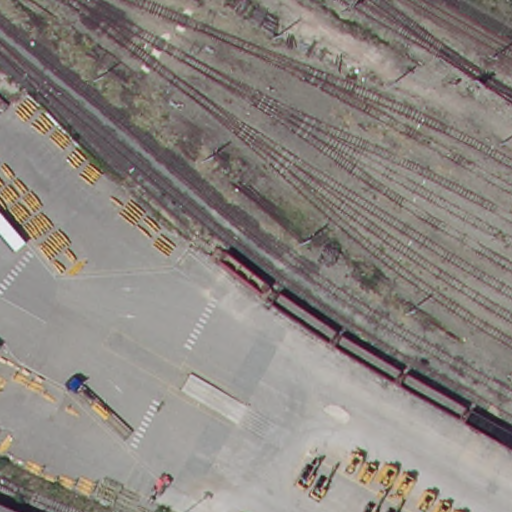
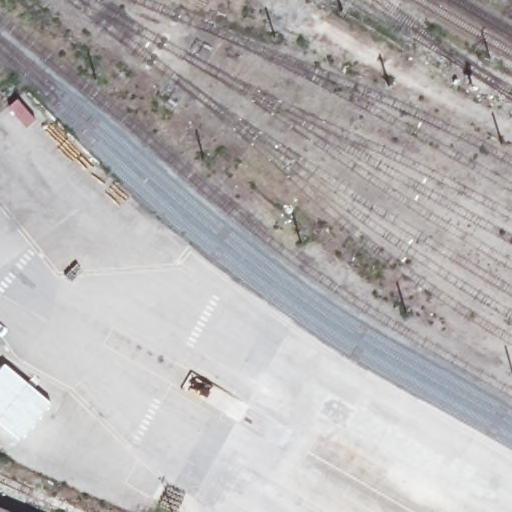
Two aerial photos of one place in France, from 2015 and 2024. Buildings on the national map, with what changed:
unchanged [(0,353),(0,336),(8,343),(0,353)]
new [(5,362),(51,401),(19,439),(0,423),(0,367),(5,362)]
unchanged [(12,512),(0,512),(0,507),(12,512)]

